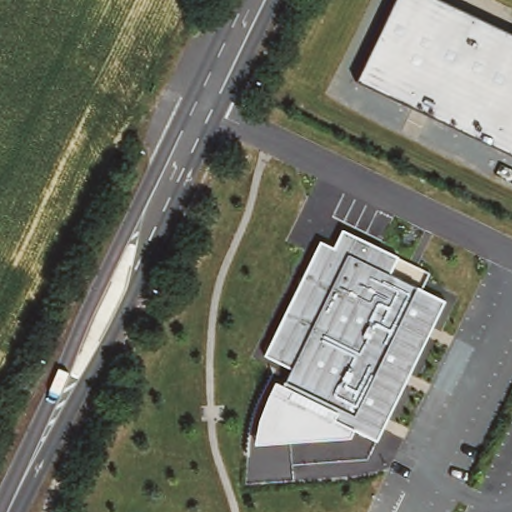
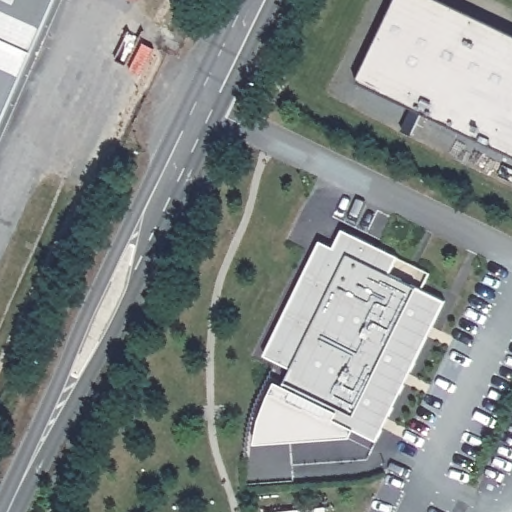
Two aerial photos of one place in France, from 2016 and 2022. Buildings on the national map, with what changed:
new [(0,137),(0,0),(61,0),(0,137)]
unchanged [(512,153),(357,80),(395,0),(439,0),(512,35),(512,153)]
unchanged [(341,230),(397,257),(388,275),(443,302),(375,440),(352,428),(348,438),(252,444),(256,420),(273,380),(282,384),(290,369),(263,356),(319,242),(333,249),(341,230)]

